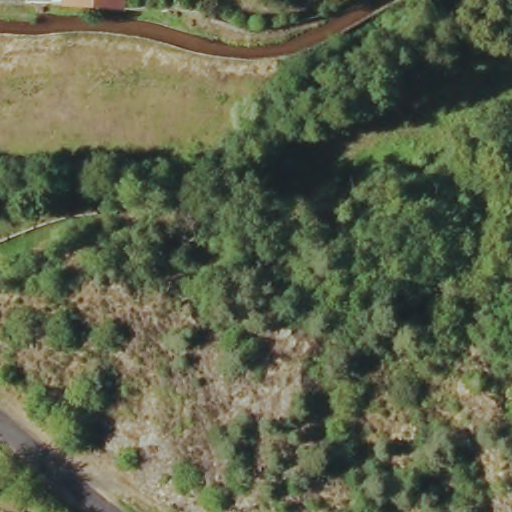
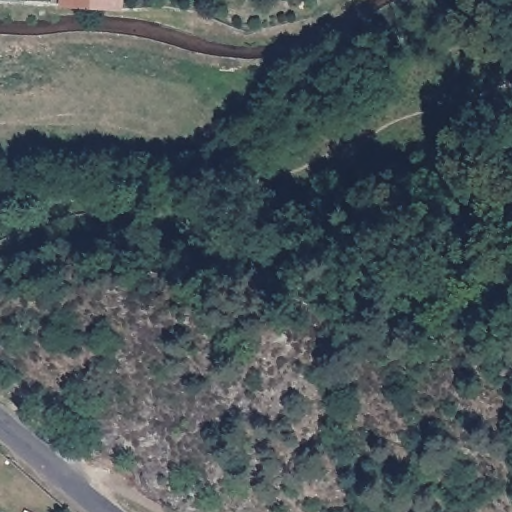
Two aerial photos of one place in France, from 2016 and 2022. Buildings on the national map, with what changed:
unchanged [(112,0),(112,10),(83,9),(84,0),(112,0)]

